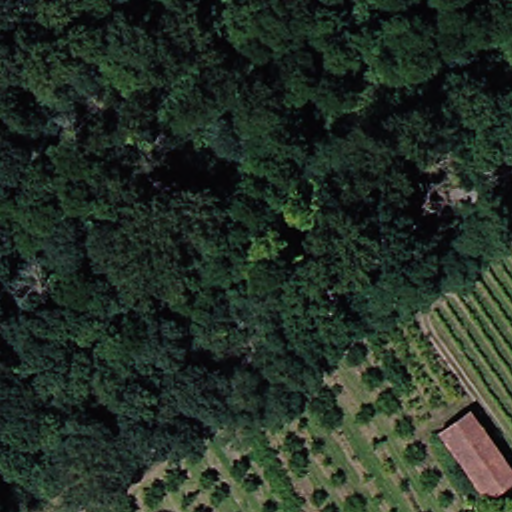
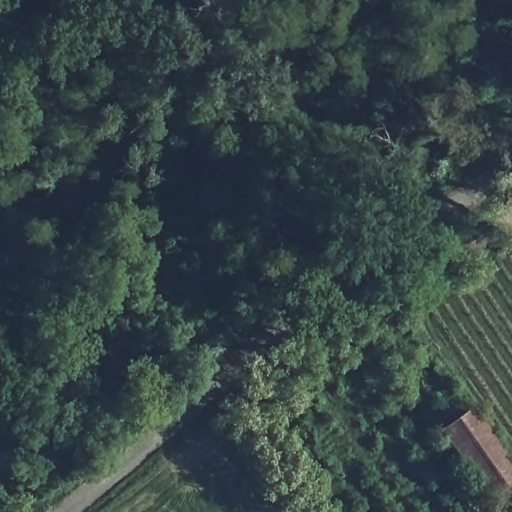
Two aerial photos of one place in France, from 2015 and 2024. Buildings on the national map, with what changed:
unchanged [(465,254),(454,237),(476,224),(486,240),(465,254)]
unchanged [(470,411),(512,471),(512,477),(486,495),(442,431),(470,411)]

